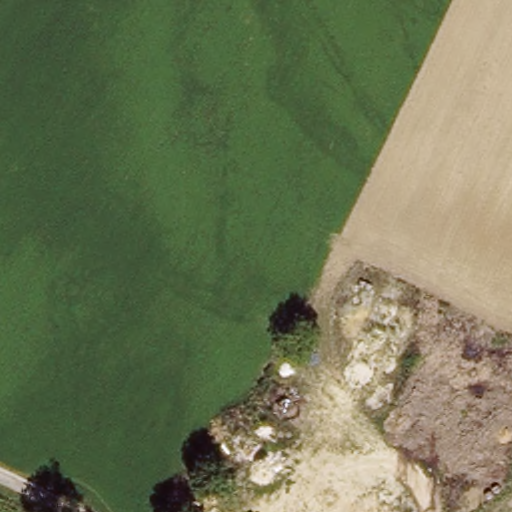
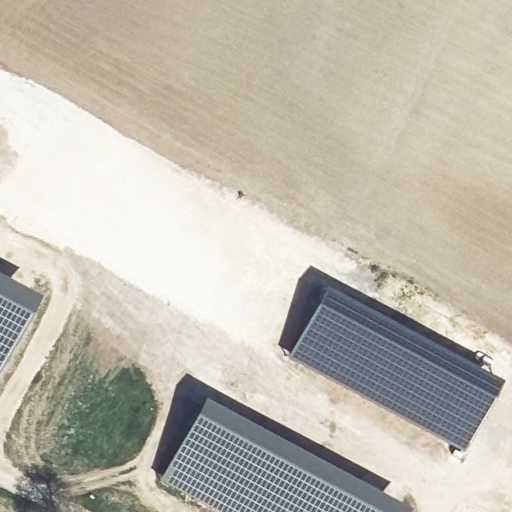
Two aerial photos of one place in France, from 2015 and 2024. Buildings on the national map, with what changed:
new [(322,285),(416,336),(497,386),(460,451),(284,356),(322,285)]
new [(26,302),(0,352),(0,289),(26,302)]
new [(191,412),(382,512),(223,512),(157,477),(191,412)]

